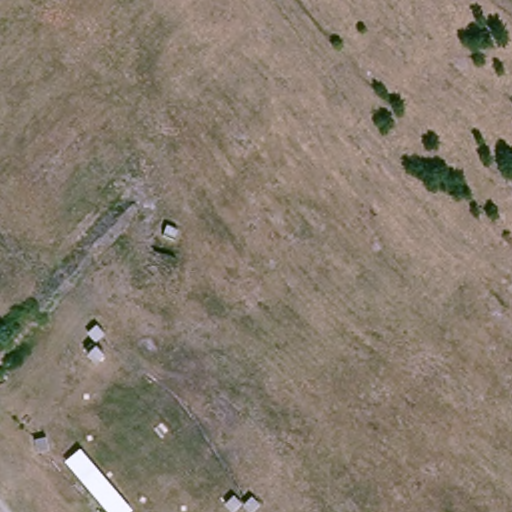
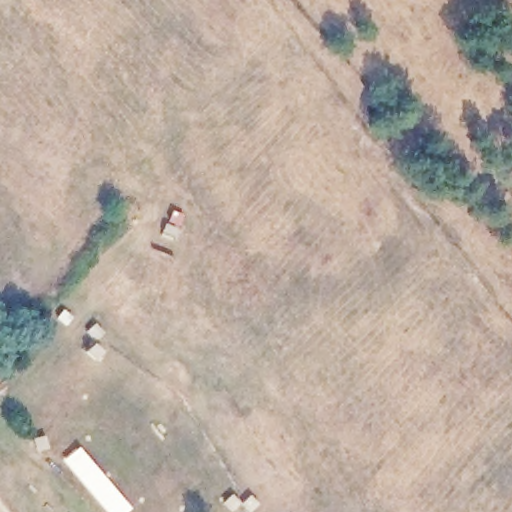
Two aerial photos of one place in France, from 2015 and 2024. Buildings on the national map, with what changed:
unchanged [(82,446),(137,507),(132,512),(107,512),(64,461),(82,446)]

